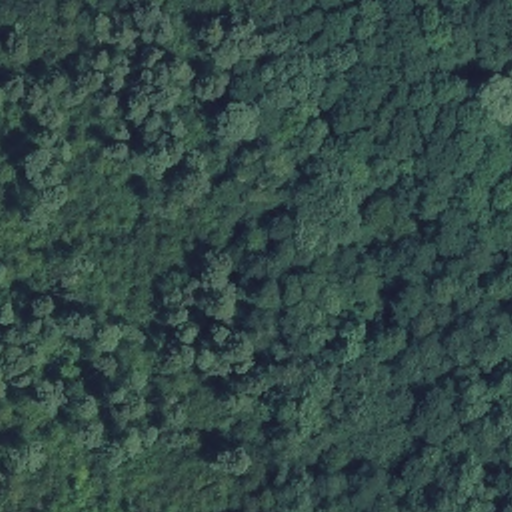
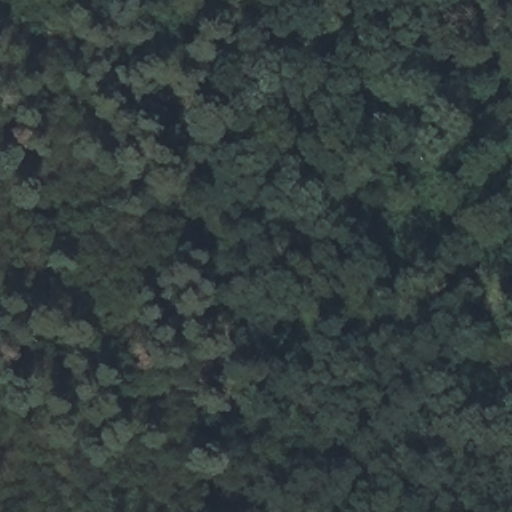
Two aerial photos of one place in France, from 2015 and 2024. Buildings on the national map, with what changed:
[]

